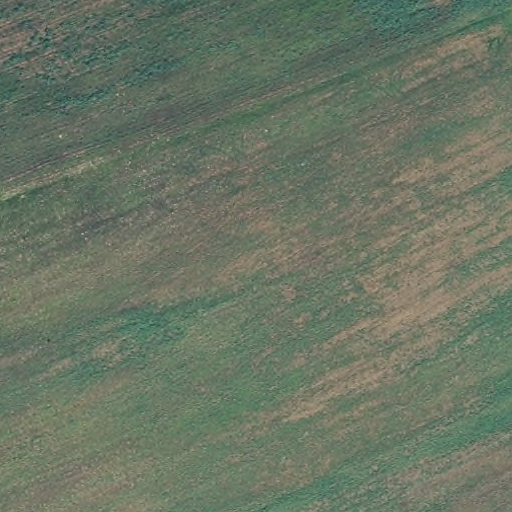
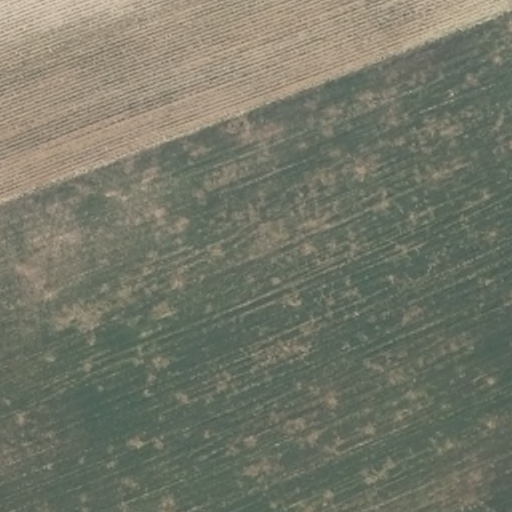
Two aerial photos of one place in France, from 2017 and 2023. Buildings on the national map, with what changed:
[]

